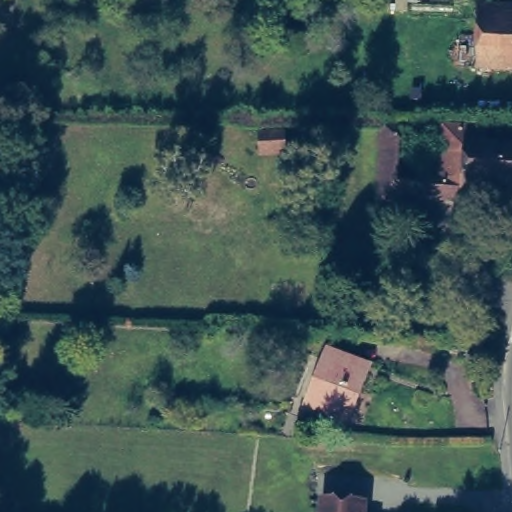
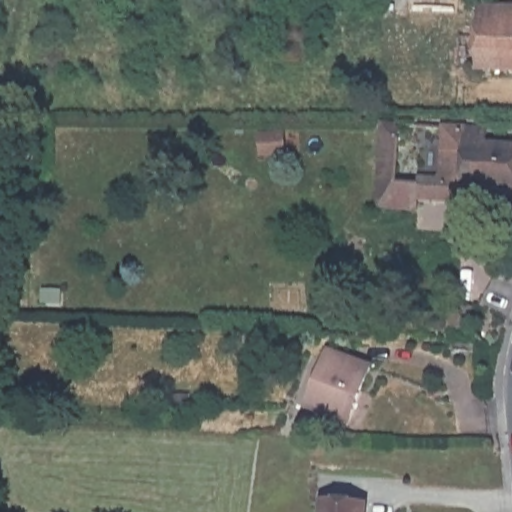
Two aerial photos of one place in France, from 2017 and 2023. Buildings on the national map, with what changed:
unchanged [(512,71),(457,70),(456,11),(512,10),(512,71)]
unchanged [(487,143),(512,146),(512,194),(418,187),(417,208),(383,205),(383,121),(487,129),(487,143)]
unchanged [(346,426),(305,409),(327,353),(347,362),(362,369),(360,376),(363,379),(346,426)]
unchanged [(361,512),(318,512),(319,506),(361,510),(361,512)]

